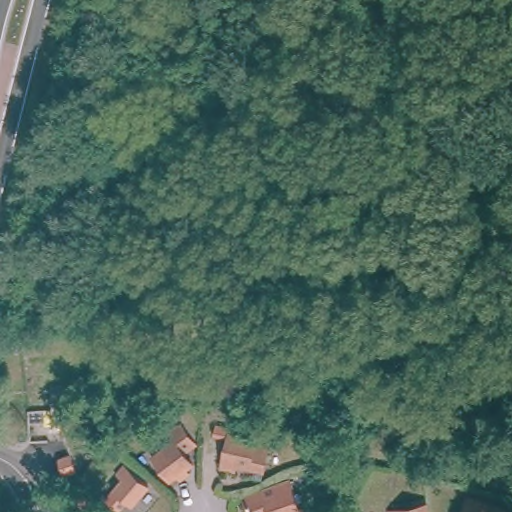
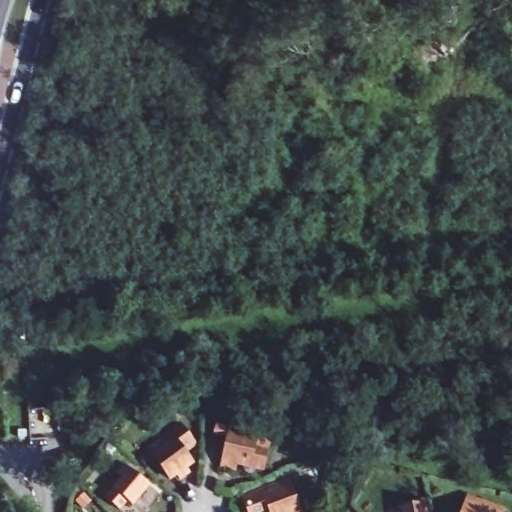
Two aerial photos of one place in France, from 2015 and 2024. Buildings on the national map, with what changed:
unchanged [(178,428),(192,446),(182,454),(188,465),(182,469),(187,475),(178,482),(175,477),(168,481),(152,458),(162,450),(157,442),(178,428)]
unchanged [(229,436),(269,445),(263,470),(238,465),(237,471),(223,468),(229,436)]
unchanged [(69,447),(77,461),(68,466),(61,452),(69,447)]
unchanged [(128,456),(153,477),(136,498),(120,485),(127,475),(120,467),(128,456)]
unchanged [(300,468),(312,506),(300,510),(297,502),(280,508),(277,497),(256,503),(250,485),(300,468)]
unchanged [(88,490),(96,497),(90,503),(83,497),(88,490)]
unchanged [(502,511),(501,512),(472,512),(475,501),(502,511)]
unchanged [(431,502),(433,512),(396,512),(395,510),(431,502)]

